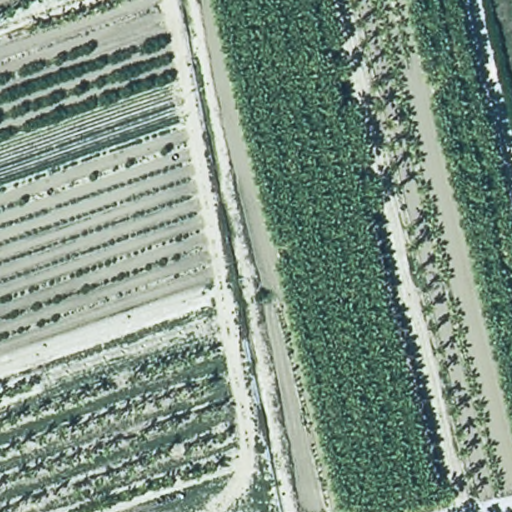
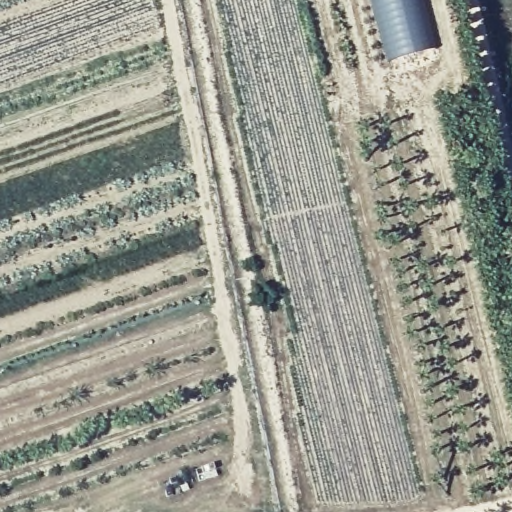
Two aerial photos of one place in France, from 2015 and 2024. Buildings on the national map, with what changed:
new [(386,59),(373,13),(370,0),(422,0),(432,46),(386,59)]

